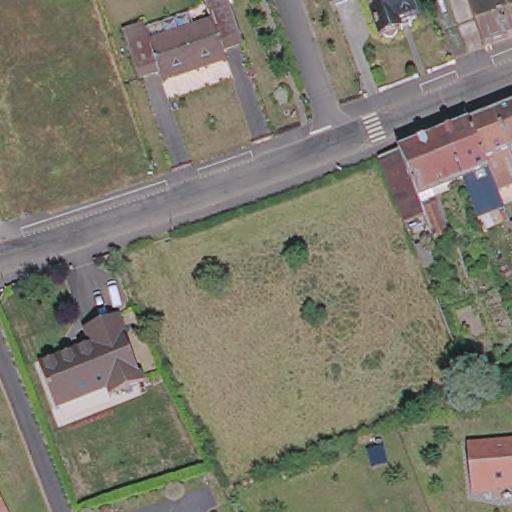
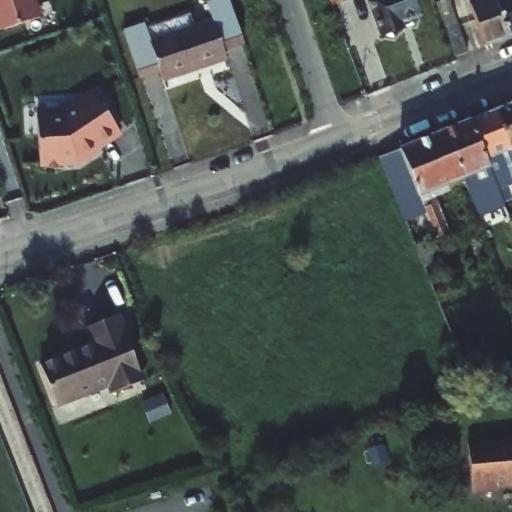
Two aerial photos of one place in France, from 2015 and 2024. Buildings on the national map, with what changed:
new [(41,17),(0,29),(0,0),(35,0),(41,17)]
unchanged [(227,45),(231,54),(167,75),(163,66),(144,73),(127,25),(148,18),(151,25),(193,10),(198,22),(216,15),(210,0),(234,0),(247,38),(227,45)]
unchanged [(336,0),(358,0),(359,2),(340,9),(336,0)]
unchanged [(406,39),(401,41),(397,49),(388,46),(384,47),(368,1),(368,0),(411,0),(421,28),(414,30),(416,35),(406,39)]
unchanged [(433,4),(446,0),(465,52),(452,57),(433,4)]
unchanged [(464,0),(493,0),(508,41),(482,51),(464,0)]
unchanged [(508,41),(493,0),(512,0),(512,40),(508,41)]
new [(59,115),(63,113),(60,109),(80,96),(82,100),(93,93),(118,132),(97,146),(98,148),(82,157),(81,155),(72,161),(61,162),(62,167),(43,169),(42,164),(39,164),(35,117),(59,115)]
unchanged [(498,110),(512,105),(512,144),(498,110)]
unchanged [(512,144),(512,176),(504,179),(495,157),(490,158),(474,119),(498,110),(512,144)]
unchanged [(467,177),(449,130),(474,119),(490,158),(499,180),(501,187),(487,192),(495,214),(484,218),(475,197),(467,177)]
unchanged [(439,196),(442,202),(454,233),(439,238),(430,212),(409,220),(383,157),(449,130),(467,177),(450,183),(453,191),(439,196)]
unchanged [(419,245),(431,241),(438,260),(427,265),(419,245)]
unchanged [(141,388),(112,400),(108,392),(57,411),(41,371),(92,351),(86,335),(116,323),(141,388)]
unchanged [(512,437),(512,488),(499,488),(499,492),(472,494),(468,441),(512,437)]
demolished [(0,512),(0,485),(13,512),(0,512)]

